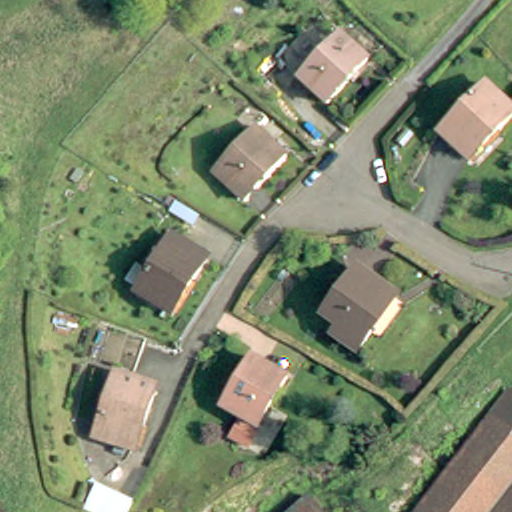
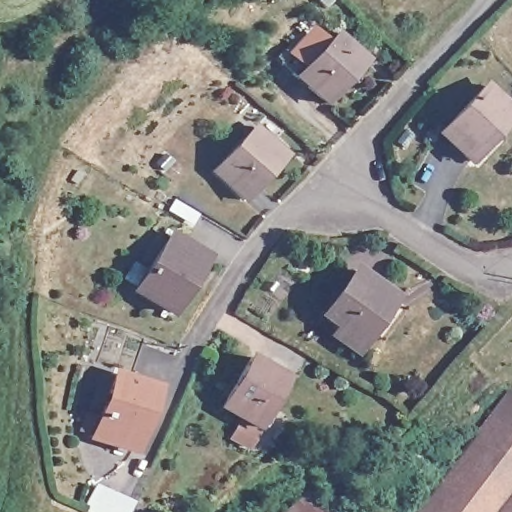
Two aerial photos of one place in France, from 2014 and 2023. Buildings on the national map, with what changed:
unchanged [(351,45),(355,40),(383,67),(340,111),(290,65),(330,25),(351,45)]
unchanged [(485,87),(512,110),(512,119),(475,160),(455,144),(443,134),(448,129),(485,87)]
unchanged [(212,171),(252,126),(284,154),(244,199),(212,171)]
unchanged [(143,296),(177,242),(212,262),(178,316),(143,296)]
unchanged [(332,328),(338,319),(323,308),(353,265),(390,288),(367,322),(372,325),(358,345),(332,328)]
unchanged [(131,286),(142,268),(153,275),(142,292),(131,286)]
unchanged [(220,408),(250,360),(287,381),(257,430),(220,408)]
unchanged [(94,431),(115,371),(156,385),(135,445),(94,431)]
unchanged [(497,425),(512,406),(512,436),(498,425),(497,425)]
unchanged [(498,425),(512,436),(512,512),(429,512),(497,425),(498,425)]
unchanged [(126,512),(90,512),(82,508),(94,485),(131,502),(126,512)]
unchanged [(321,512),(298,512),(311,501),(321,512)]

